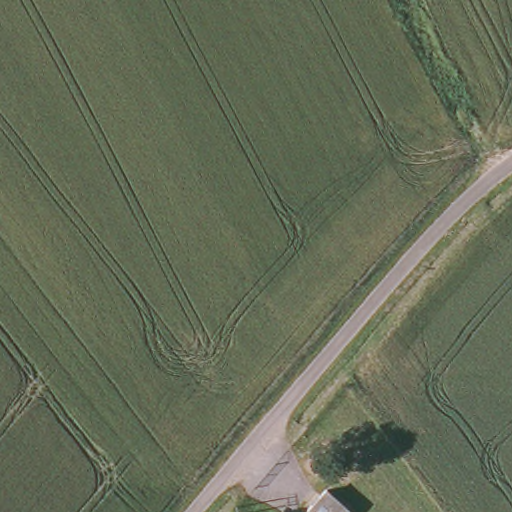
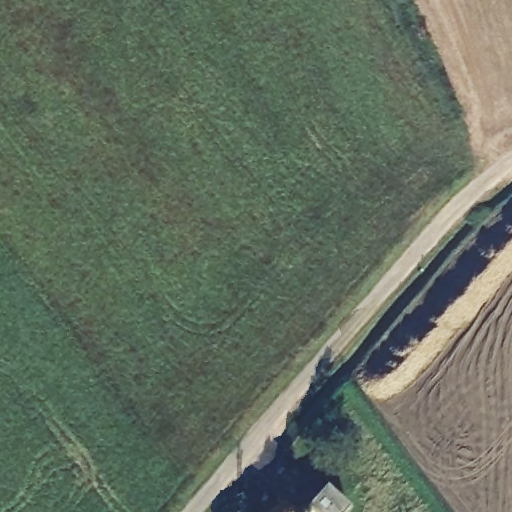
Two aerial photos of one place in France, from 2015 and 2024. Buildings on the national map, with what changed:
unchanged [(347,509),(345,512),(308,512),(326,490),(347,509)]

